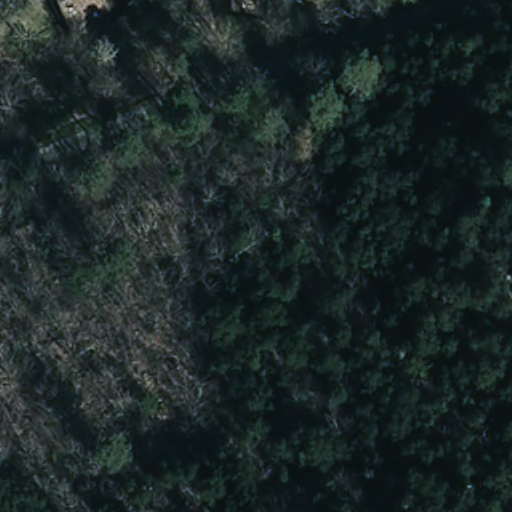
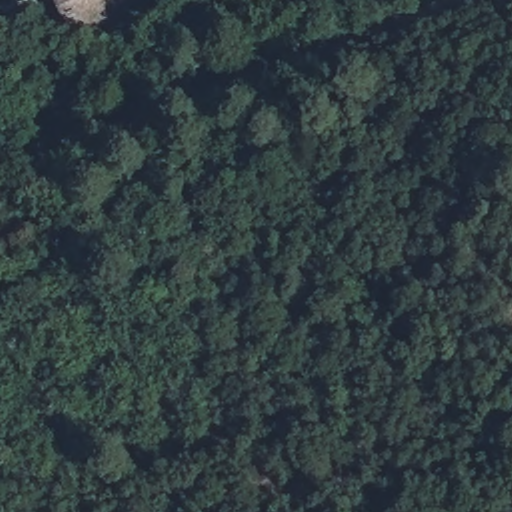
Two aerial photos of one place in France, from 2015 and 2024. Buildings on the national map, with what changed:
unchanged [(69,36),(50,0),(100,0),(110,21),(69,36)]
unchanged [(194,0),(205,0),(228,2),(226,17),(225,30),(192,26),(194,0)]

